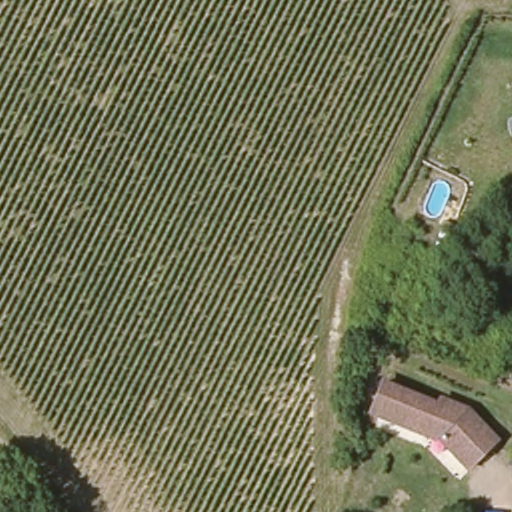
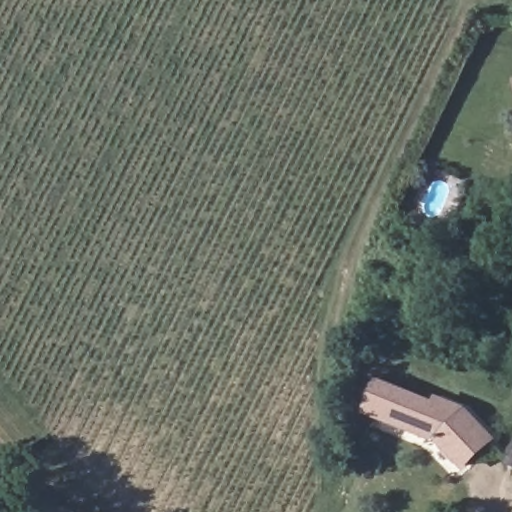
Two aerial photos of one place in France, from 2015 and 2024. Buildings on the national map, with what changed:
unchanged [(435,404),(437,400),(461,410),(490,440),(462,465),(434,436),(432,439),(367,409),(380,379),(435,404)]
unchanged [(511,454),(512,453),(512,454),(511,454)]

